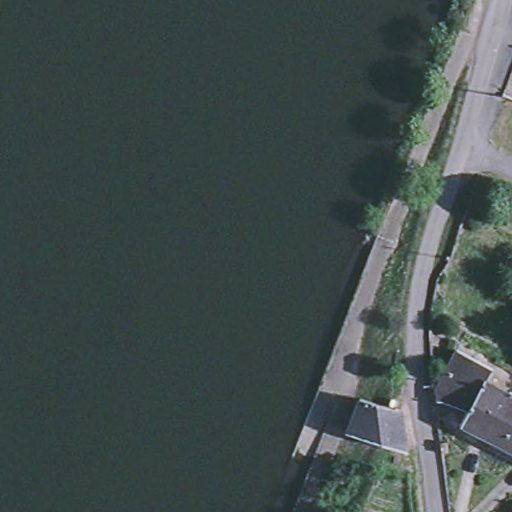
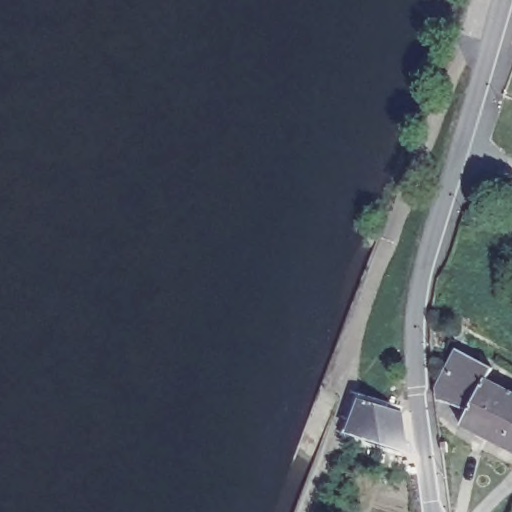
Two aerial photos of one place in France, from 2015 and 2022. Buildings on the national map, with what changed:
unchanged [(499,444),(460,423),(468,410),(439,400),(439,386),(458,349),(493,367),(486,380),(512,394),(512,420),(499,444)]
unchanged [(359,398),(384,405),(401,410),(406,451),(346,433),(359,398)]
unchanged [(499,444),(512,420),(512,451),(499,444)]

